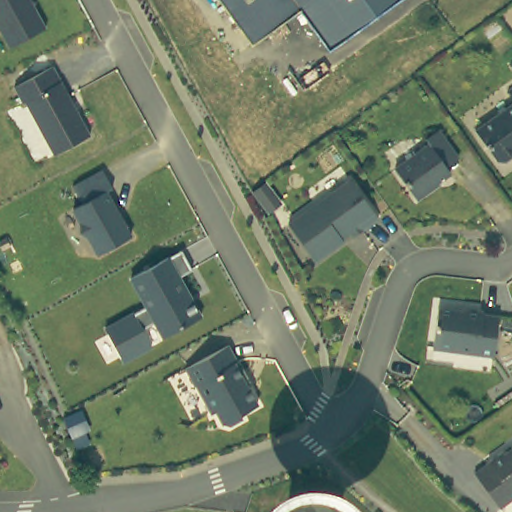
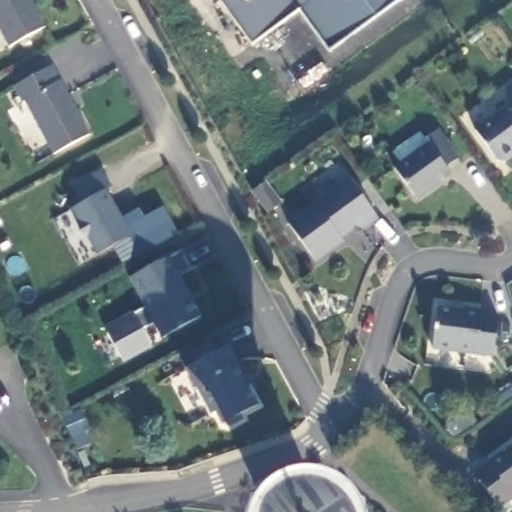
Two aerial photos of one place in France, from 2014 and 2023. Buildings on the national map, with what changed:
unchanged [(46,27),(9,47),(0,31),(0,0),(31,0),(46,27)]
unchanged [(327,50),(297,9),(249,45),(217,0),(397,0),(327,50)]
unchanged [(54,66),(90,135),(53,154),(24,101),(22,102),(14,85),(54,66)]
unchanged [(508,84),(512,82),(512,90),(508,84)]
unchanged [(506,155),(498,154),(476,124),(512,98),(512,151),(506,155)]
unchanged [(440,177),(441,179),(418,195),(395,164),(429,139),(425,133),(438,124),(449,139),(459,153),(447,162),(451,167),(440,177)]
unchanged [(102,169),(113,188),(108,191),(133,237),(97,256),(72,209),(83,202),(73,184),(102,169)]
unchanged [(377,219),(360,230),(357,226),(341,238),(343,240),(315,259),(287,221),(347,179),(377,219)]
unchanged [(281,203),(269,212),(254,192),(265,183),(281,203)]
unchanged [(180,251),(191,270),(180,276),(201,317),(162,339),(153,323),(143,329),(153,346),(124,362),(104,327),(144,305),(130,278),(180,251)]
unchanged [(464,304),(464,301),(483,303),(483,307),(498,308),(494,349),(435,341),(440,300),(464,304)]
unchanged [(228,344),(260,403),(242,413),(242,421),(231,427),(222,424),(215,412),(211,414),(186,368),(228,344)]
unchanged [(484,459),(499,448),(501,450),(512,442),(512,489),(510,490),(512,493),(512,496),(499,506),(472,470),(485,461),(484,459)]

